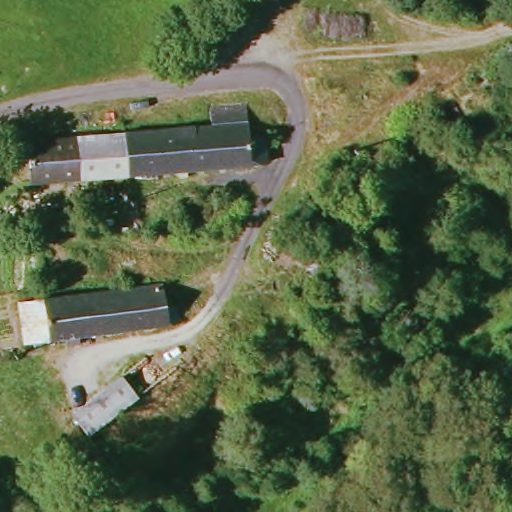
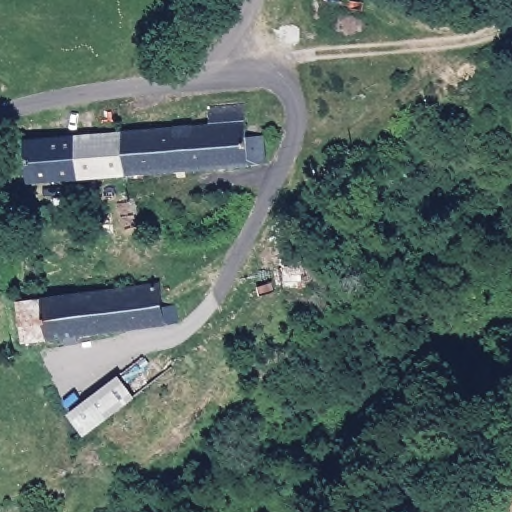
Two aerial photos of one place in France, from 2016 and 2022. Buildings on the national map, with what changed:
unchanged [(113,134),(200,127),(199,110),(236,107),(238,140),(258,139),(258,160),(242,161),(242,165),(117,175),(113,134)]
unchanged [(23,183),(20,142),(113,134),(117,175),(23,183)]
unchanged [(13,340),(10,299),(93,289),(150,282),(151,303),(166,302),(167,320),(65,333),(13,340)]
unchanged [(85,435),(70,414),(116,377),(130,395),(85,435)]

